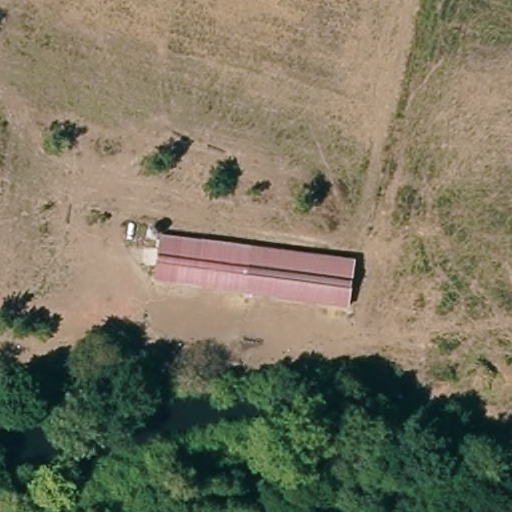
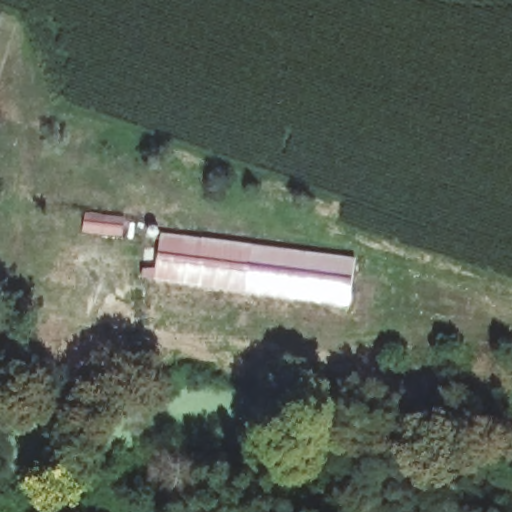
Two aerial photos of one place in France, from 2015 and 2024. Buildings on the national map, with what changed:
unchanged [(154,273),(163,227),(357,267),(349,312),(154,273)]

